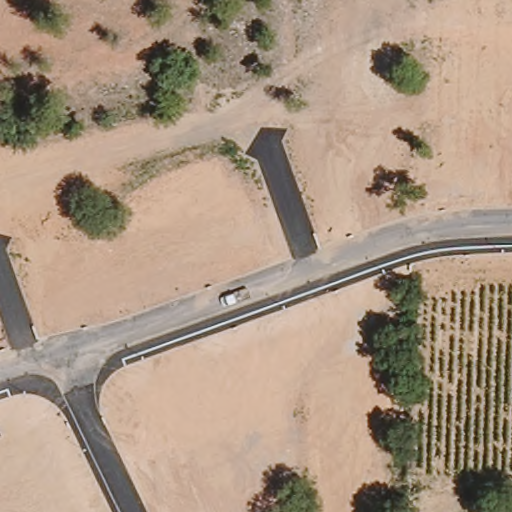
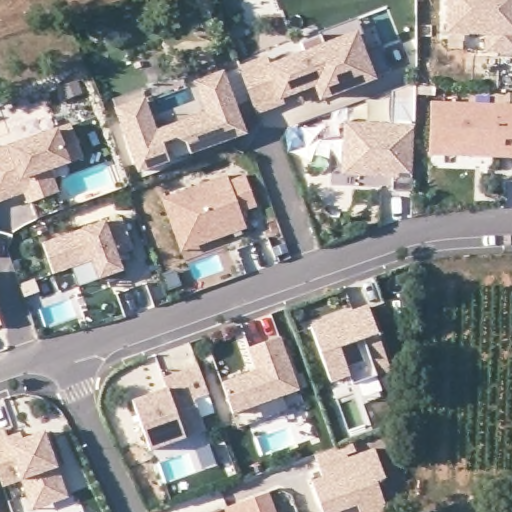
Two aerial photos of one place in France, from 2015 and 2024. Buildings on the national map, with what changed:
new [(490,50),(490,32),(451,31),(452,0),(512,0),(512,51),(490,50)]
new [(298,92),(283,97),(285,102),(256,112),(241,69),(269,59),(272,68),(307,55),(303,44),(323,37),(322,33),(359,20),(366,39),(360,42),(365,55),(382,49),(391,74),(322,99),(321,96),(302,102),(298,92)]
new [(137,102),(142,115),(149,113),(156,132),(208,114),(197,82),(223,73),(245,133),(140,171),(117,109),(137,102)]
unchanged [(436,104),(512,108),(512,154),(497,153),(469,152),(434,151),(436,104)]
new [(348,123),(418,125),(415,190),(395,189),(396,174),(346,172),(348,123)]
new [(0,200),(0,151),(72,124),(83,156),(49,168),(58,193),(30,203),(26,190),(14,195),(0,200)]
new [(173,223),(164,198),(230,175),(232,181),(248,175),(259,205),(243,211),(249,227),(199,245),(183,251),(173,223)]
new [(107,221),(108,223),(124,217),(135,249),(119,254),(125,270),(100,279),(94,259),(55,273),(44,243),(107,221)]
new [(367,307),(389,369),(375,374),(375,376),(351,385),(348,375),(329,382),(309,328),(367,307)]
new [(2,325),(0,326),(0,320),(2,325)]
new [(258,370),(250,348),(281,337),(300,390),(234,414),(223,383),(258,370)]
unchanged [(167,389),(164,379),(199,366),(209,394),(195,399),(206,431),(151,450),(133,401),(167,389)]
new [(33,510),(28,496),(23,480),(3,487),(0,479),(0,432),(5,430),(8,439),(22,434),(24,440),(45,432),(63,483),(68,497),(33,510)]
new [(316,454),(336,447),(353,441),(357,451),(348,454),(349,458),(376,449),(387,477),(378,480),(386,501),(383,512),(360,512),(358,504),(337,512),(323,512),(312,481),(324,477),(316,454)]
new [(268,493),(274,512),(228,512),(227,507),(268,493)]

